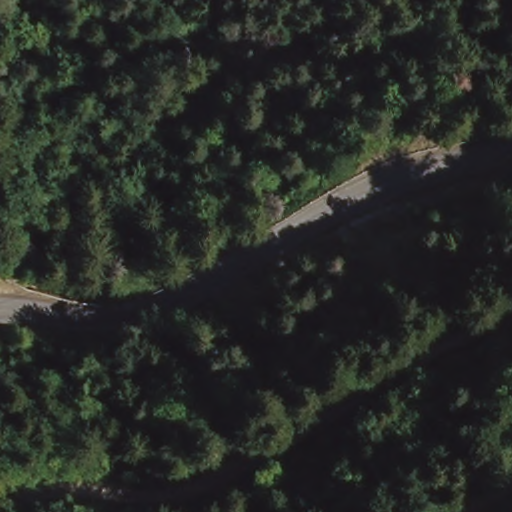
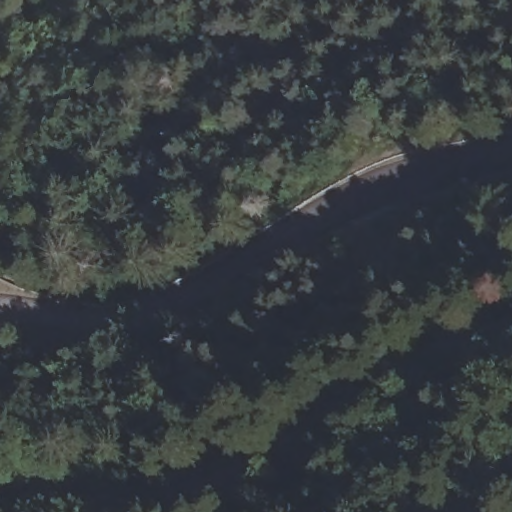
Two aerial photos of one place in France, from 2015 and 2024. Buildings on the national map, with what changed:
[]

